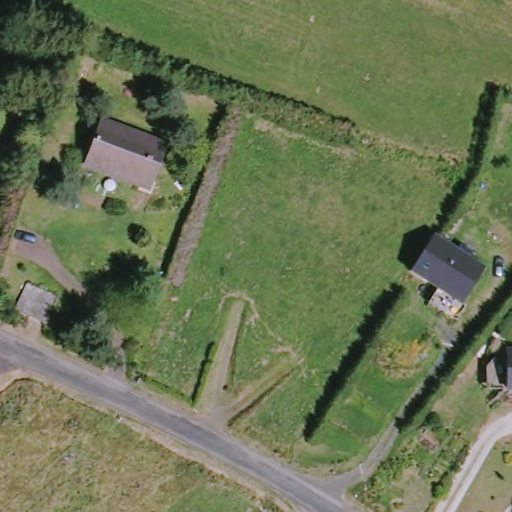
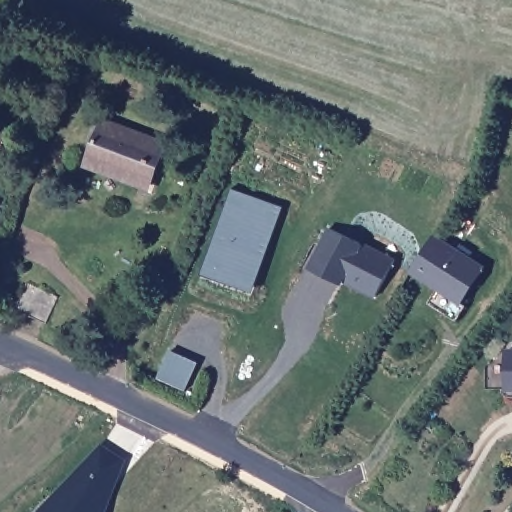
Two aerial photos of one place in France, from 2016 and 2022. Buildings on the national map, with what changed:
unchanged [(17,42),(8,68),(0,65),(0,45),(3,37),(17,42)]
unchanged [(170,159),(162,157),(152,181),(121,169),(120,175),(95,165),(113,122),(175,145),(170,159)]
unchanged [(15,150),(4,158),(0,157),(0,134),(2,133),(13,137),(15,150)]
new [(202,274),(232,189),(283,207),(253,292),(202,274)]
new [(328,228),(395,260),(375,299),(343,283),(342,286),(308,269),(328,228)]
unchanged [(436,236),(488,269),(465,307),(468,309),(458,322),(430,304),(437,291),(411,274),(436,236)]
unchanged [(48,321),(14,308),(24,279),(57,292),(48,321)]
unchanged [(511,351),(512,351),(512,389),(511,389),(511,351)]
new [(127,460),(107,512),(36,512),(100,441),(127,460)]

